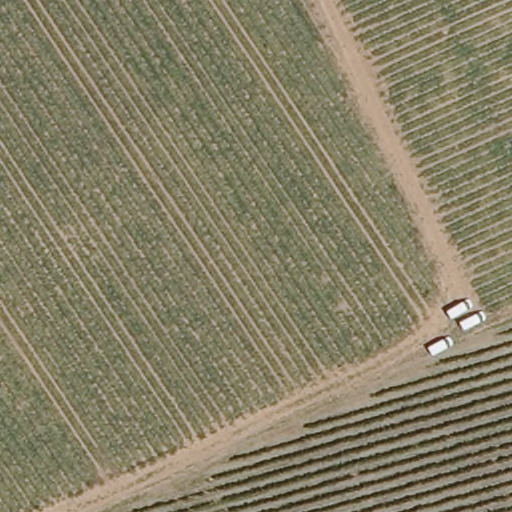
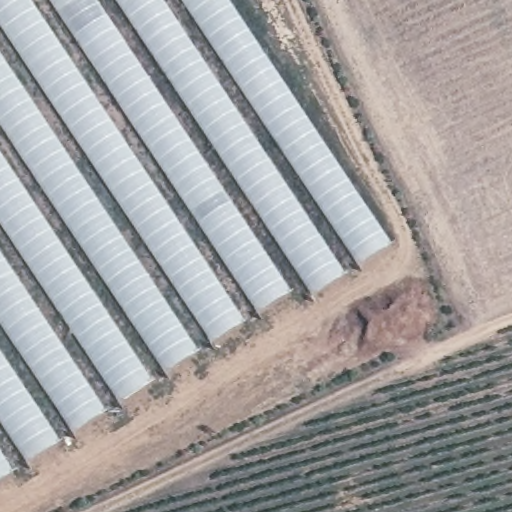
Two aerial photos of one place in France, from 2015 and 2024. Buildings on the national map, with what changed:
new [(0,483),(0,0),(228,0),(392,246),(314,297),(305,283),(0,483)]

